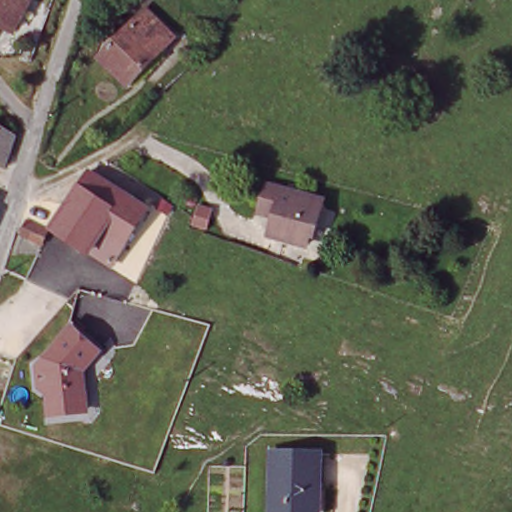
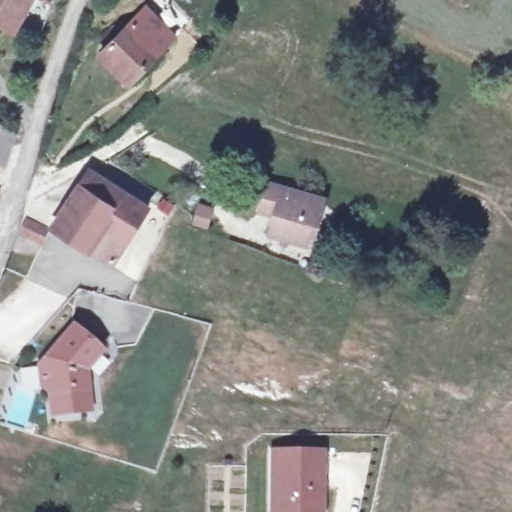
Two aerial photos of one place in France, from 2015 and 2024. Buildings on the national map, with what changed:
unchanged [(20,34),(0,25),(0,0),(33,0),(20,34)]
unchanged [(105,60),(132,12),(136,6),(168,25),(160,38),(136,79),(105,60)]
unchanged [(12,144),(0,161),(0,137),(12,144)]
unchanged [(87,163),(148,205),(111,256),(52,215),(87,163)]
unchanged [(312,222),(309,221),(300,249),(265,239),(270,221),(254,217),(263,187),(317,204),(312,222)]
unchanged [(27,208),(46,218),(40,231),(22,221),(18,220),(25,207),(27,208)]
unchanged [(65,329),(93,353),(71,379),(80,386),(83,411),(47,415),(42,383),(46,378),(33,367),(65,329)]
unchanged [(263,512),(265,448),(325,447),(323,512),(263,512)]

